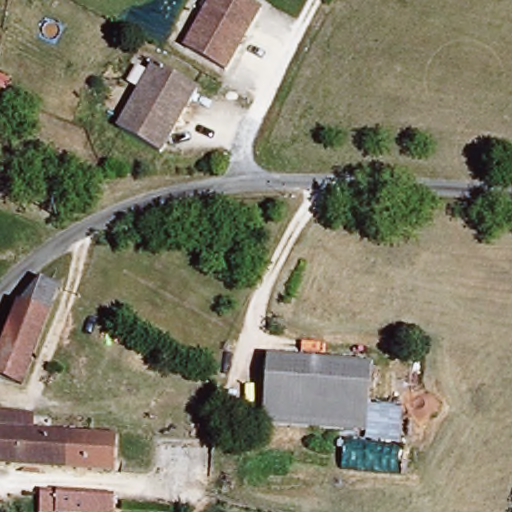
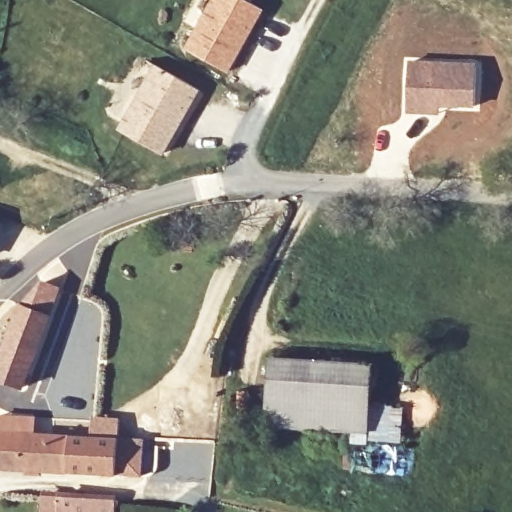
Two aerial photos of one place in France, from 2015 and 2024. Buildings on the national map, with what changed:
unchanged [(227,71),(187,50),(214,0),(245,0),(260,8),(227,71)]
new [(409,59),(478,62),(475,109),(441,107),(440,115),(407,113),(409,59)]
unchanged [(158,65),(199,89),(170,137),(162,151),(122,127),(124,125),(158,65)]
unchanged [(0,376),(0,362),(22,302),(35,278),(58,285),(25,384),(0,376)]
unchanged [(265,351),(371,357),(365,425),(317,420),(262,418),(264,411),(265,351)]
unchanged [(115,475),(0,468),(0,414),(35,416),(33,432),(62,435),(117,438),(115,475)]
unchanged [(42,512),(43,495),(114,499),(114,512),(42,512)]

